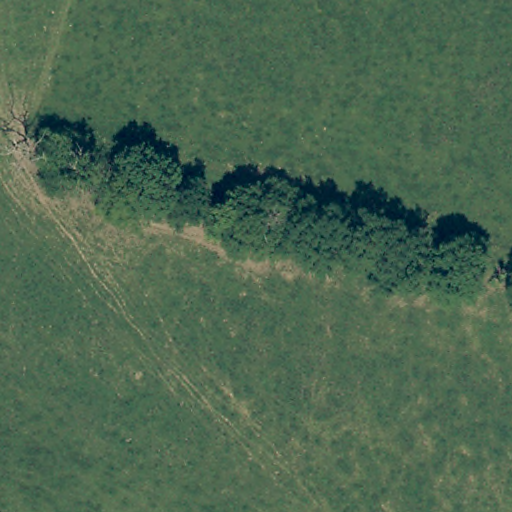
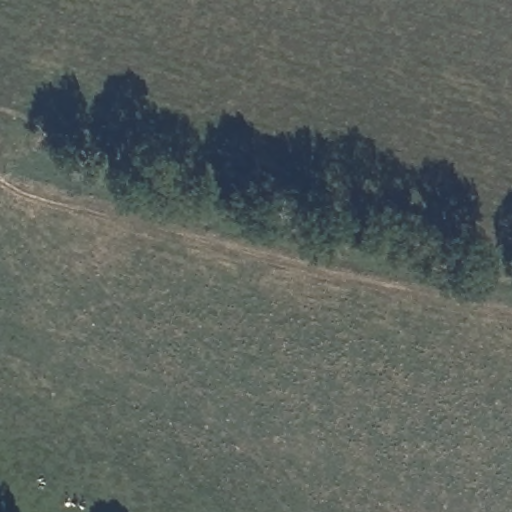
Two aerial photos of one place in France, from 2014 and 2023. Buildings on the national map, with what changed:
[]

